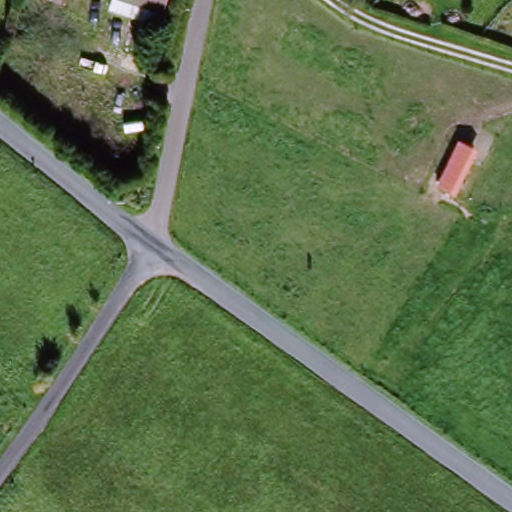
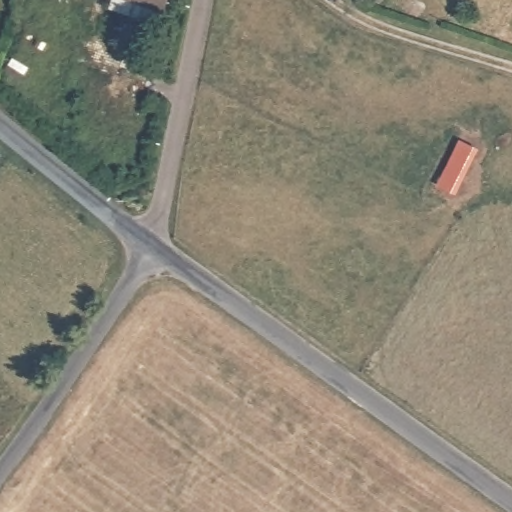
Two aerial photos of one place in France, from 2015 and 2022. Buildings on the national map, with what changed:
unchanged [(120,0),(149,0),(145,9),(120,0)]

